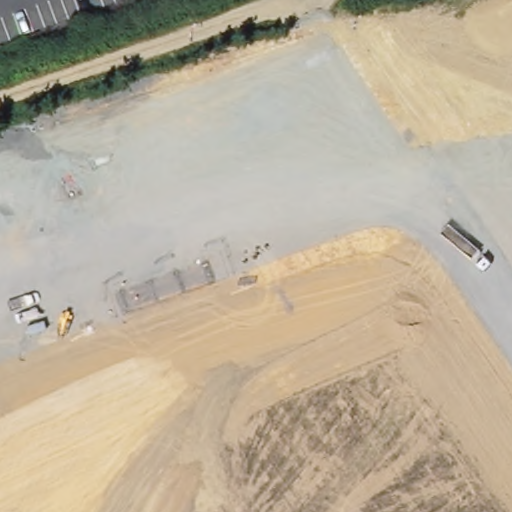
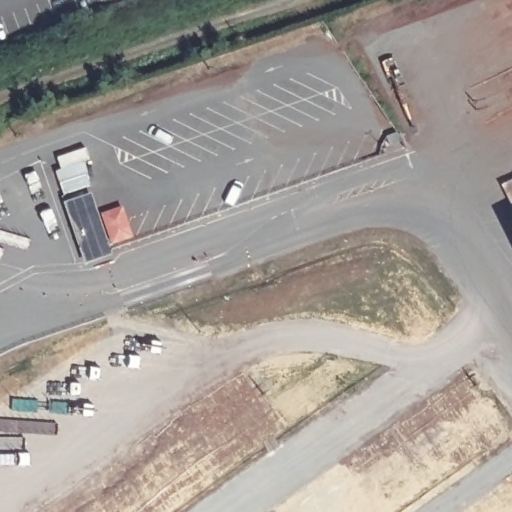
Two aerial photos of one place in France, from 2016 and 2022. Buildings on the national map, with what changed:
new [(109,246),(112,255),(84,263),(63,204),(91,194),(99,216),(122,206),(133,237),(109,246)]

